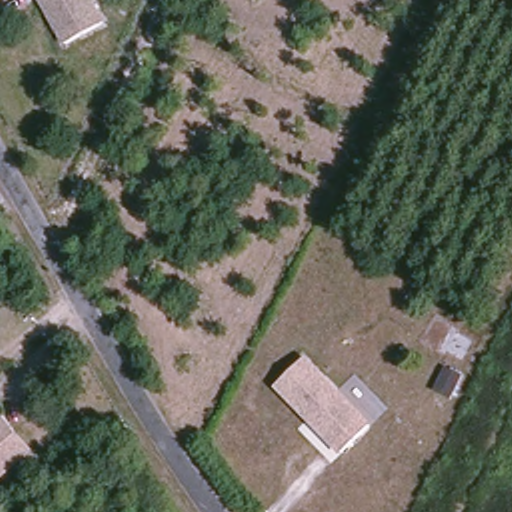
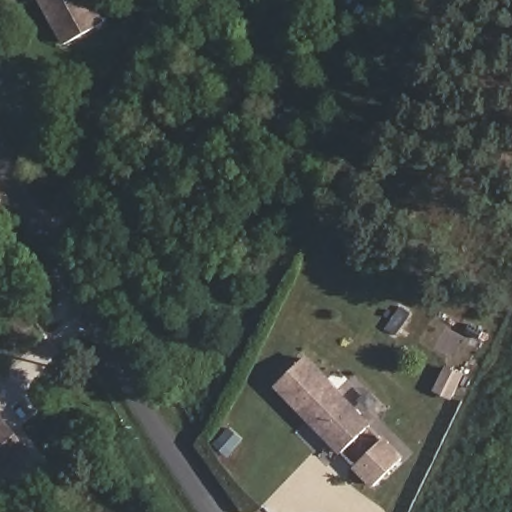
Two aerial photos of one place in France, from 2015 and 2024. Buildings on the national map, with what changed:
unchanged [(38,0),(87,0),(99,21),(61,42),(38,0)]
unchanged [(276,381),(304,355),(368,427),(340,453),(276,381)]
unchanged [(441,405),(452,383),(466,390),(455,412),(441,405)]
unchanged [(0,418),(28,451),(0,475),(0,418)]
new [(352,467),(383,438),(404,456),(371,487),(352,467)]

